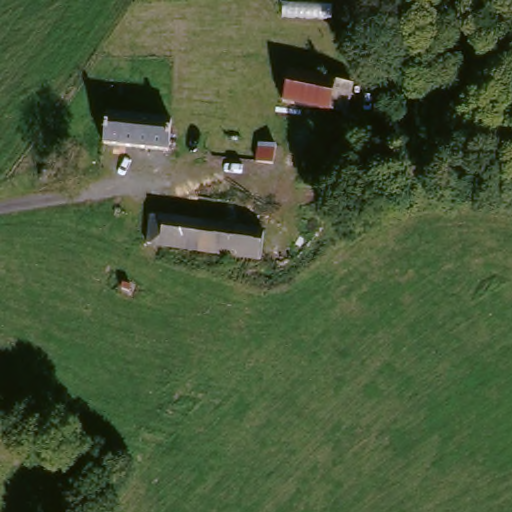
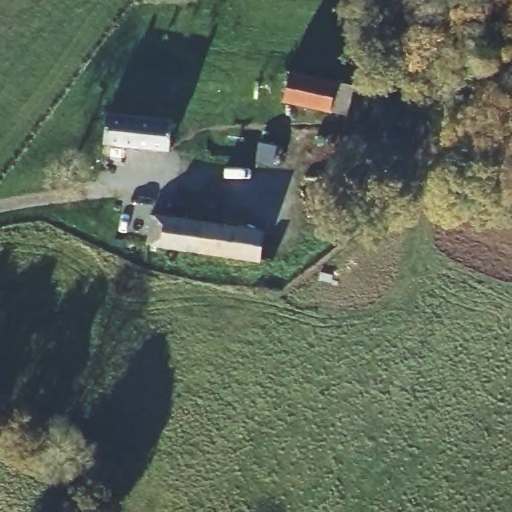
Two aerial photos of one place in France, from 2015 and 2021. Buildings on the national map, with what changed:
unchanged [(346,80),(339,111),(286,102),(292,71),(346,80)]
unchanged [(169,147),(110,140),(112,109),(172,116),(169,147)]
unchanged [(268,166),(255,162),(262,140),(276,144),(268,166)]
unchanged [(266,227),(262,257),(142,241),(149,210),(266,227)]

